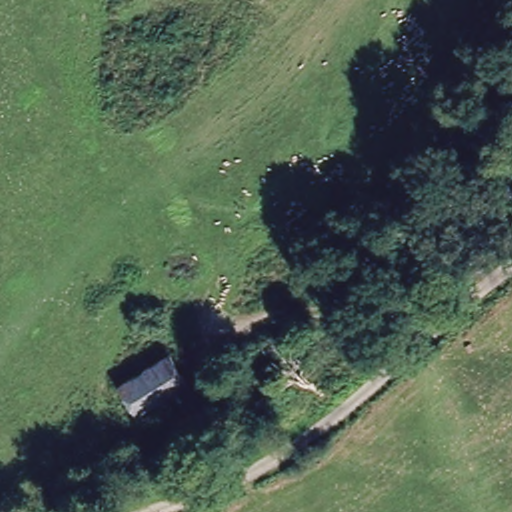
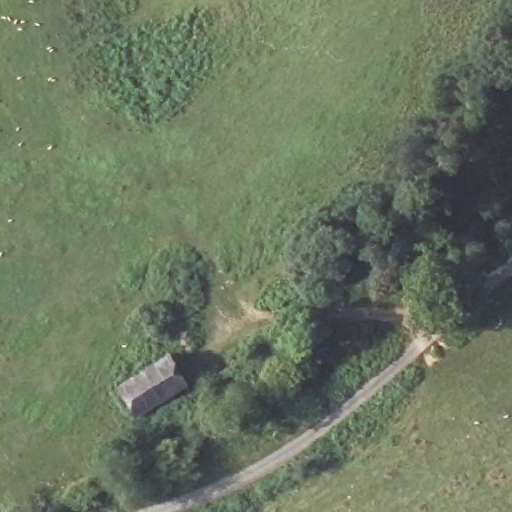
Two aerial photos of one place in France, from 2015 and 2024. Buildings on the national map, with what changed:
unchanged [(131,414),(114,381),(170,354),(187,388),(156,402),(131,414)]

